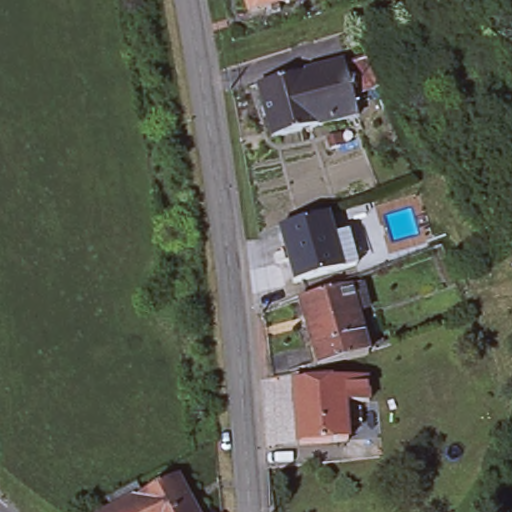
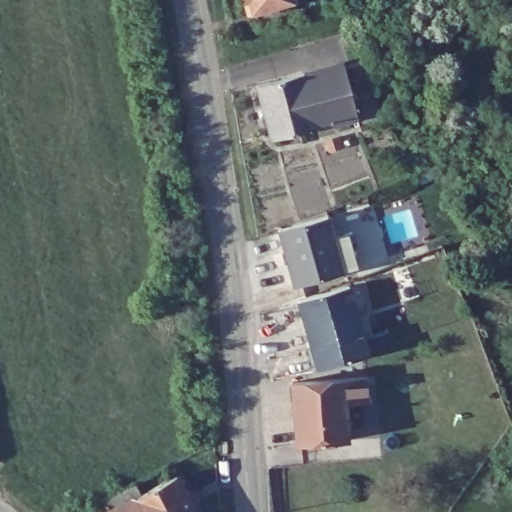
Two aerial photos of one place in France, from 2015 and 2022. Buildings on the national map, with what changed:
unchanged [(252,19),(247,0),(299,0),(301,5),(252,19)]
unchanged [(350,68),(372,61),(383,89),(358,97),(364,118),(322,129),(307,76),(350,65),(350,68)]
unchanged [(278,140),(264,88),(307,76),(322,129),(278,140)]
unchanged [(336,133),(339,144),(329,147),(327,136),(336,133)]
unchanged [(290,246),(284,227),(332,212),(338,232),(352,229),(361,263),(347,267),(300,280),(290,246)]
unchanged [(350,282),(362,281),(368,306),(357,309),(363,332),(313,345),(300,297),(350,282)]
unchanged [(313,345),(363,332),(368,352),(366,352),(339,360),(318,365),(313,345)]
unchanged [(297,384),(348,380),(372,378),(374,402),(350,404),(353,441),(301,445),(298,405),(297,384)]
unchanged [(199,512),(147,512),(140,498),(180,477),(199,512)]
unchanged [(147,512),(112,512),(140,498),(147,512)]

